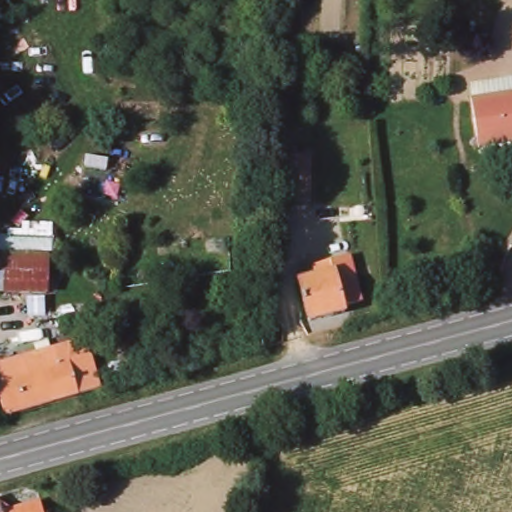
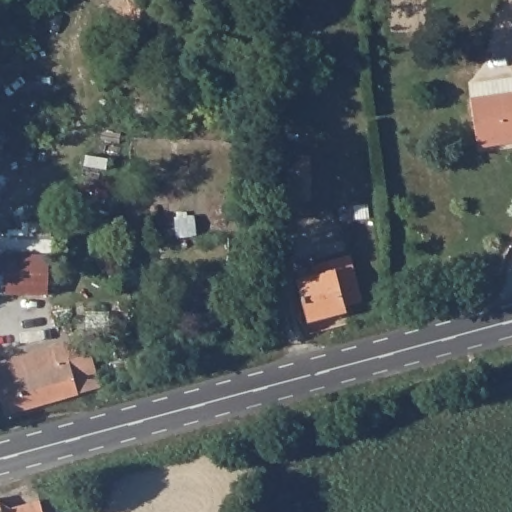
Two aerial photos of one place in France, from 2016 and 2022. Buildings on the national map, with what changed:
unchanged [(471,99),(472,98),(470,85),(512,79),(512,143),(478,147),(471,99)]
unchanged [(311,201),(285,200),(286,155),(311,156),(311,201)]
unchanged [(47,256),(46,293),(0,293),(0,256),(47,256)]
unchanged [(365,301),(348,305),(350,311),(313,321),(303,280),(322,275),(320,266),(335,262),(354,257),(365,301)]
unchanged [(83,394),(9,415),(0,383),(0,365),(70,344),(77,342),(82,342),(88,345),(92,349),(95,354),(105,388),(83,394)]
unchanged [(48,512),(0,512),(0,500),(4,498),(5,502),(16,509),(45,501),(48,512)]

